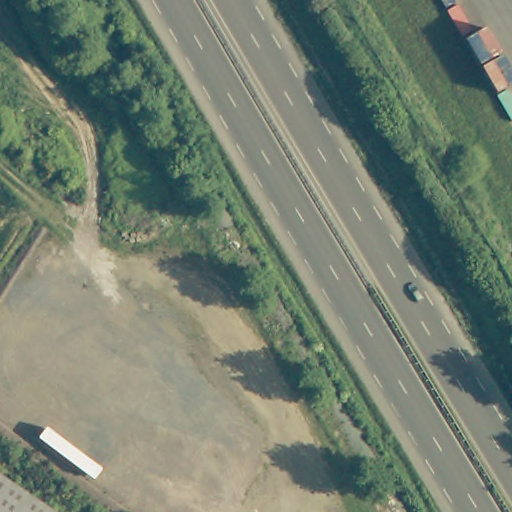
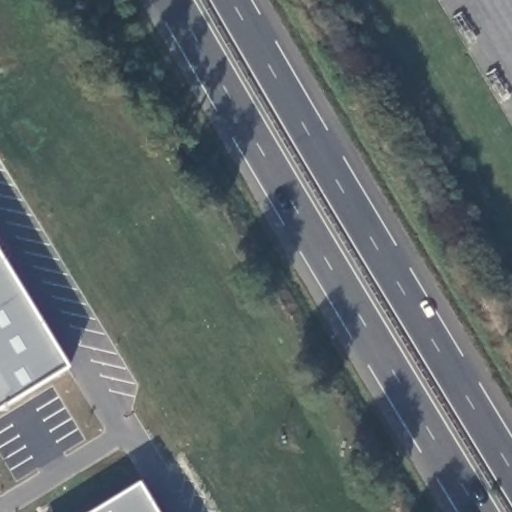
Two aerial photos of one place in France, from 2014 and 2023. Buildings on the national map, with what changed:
new [(0,411),(0,254),(69,368),(0,411)]
demolished [(0,512),(0,476),(53,512),(0,512)]
new [(156,512),(94,512),(139,484),(156,512)]

